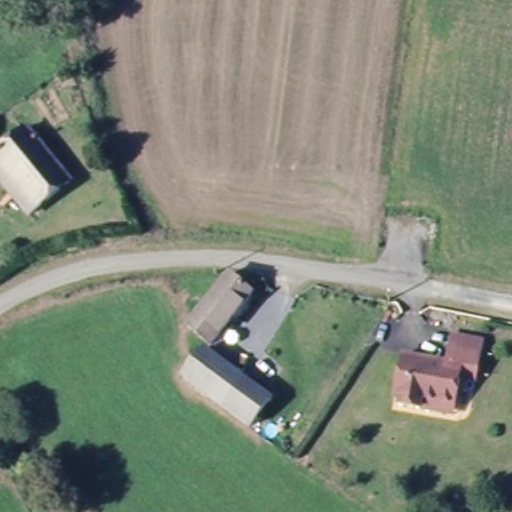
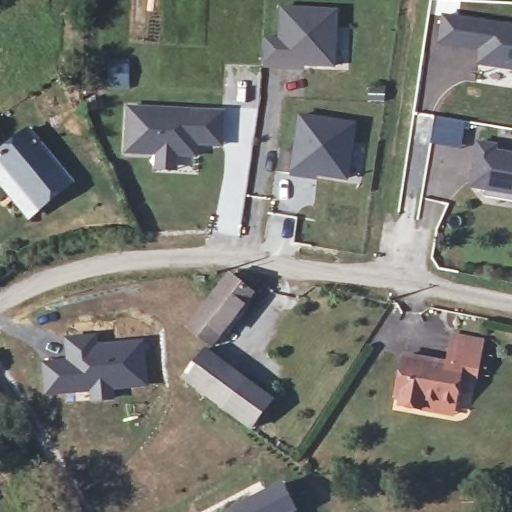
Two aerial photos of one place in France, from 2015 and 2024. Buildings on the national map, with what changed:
new [(265,37),(281,38),(283,7),(337,9),(335,64),(298,62),(298,67),(265,66),(265,37)]
new [(478,64),(480,49),(471,47),(453,45),(438,42),(442,16),(457,19),(512,27),(512,69),(478,64)]
new [(125,154),(127,109),(222,114),(221,132),(220,147),(195,146),(195,157),(175,157),(175,172),(155,171),(155,156),(125,154)]
new [(300,114),(356,122),(348,181),(316,175),(314,182),(290,176),(300,114)]
new [(433,117),(464,121),(460,149),(428,144),(433,117)]
unchanged [(74,183),(31,214),(0,171),(0,153),(32,129),(74,183)]
new [(476,143),(495,146),(493,152),(512,155),(512,194),(475,188),(470,180),(476,143)]
unchanged [(265,281),(216,347),(211,344),(192,331),(231,278),(265,281)]
unchanged [(423,408),(406,406),(407,402),(410,394),(400,392),(406,355),(439,358),(454,361),(456,347),(458,333),(488,337),(486,350),(481,380),(460,378),(455,402),(453,412),(423,408)]
new [(66,360),(65,337),(97,335),(98,345),(145,340),(149,387),(114,390),(115,400),(91,402),(90,392),(44,396),(42,361),(66,360)]
unchanged [(263,440),(252,431),(184,382),(205,353),(272,403),(261,417),(273,427),(263,440)]
new [(281,481),(296,512),(297,512),(222,512),(230,507),(281,481)]

